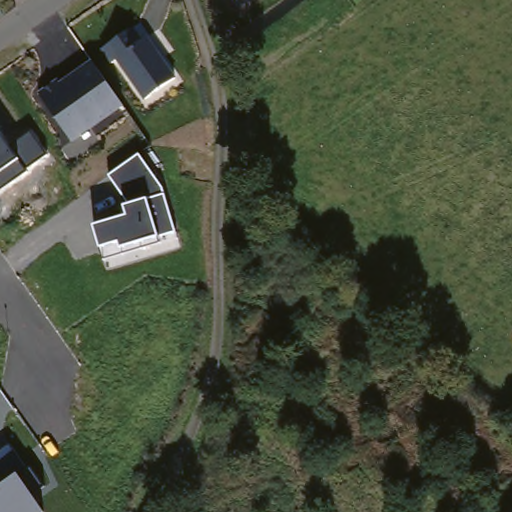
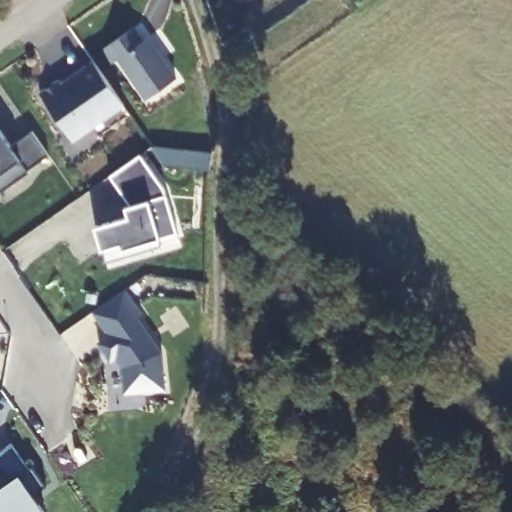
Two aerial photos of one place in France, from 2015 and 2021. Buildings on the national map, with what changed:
unchanged [(143,40),(148,36),(176,76),(145,99),(117,59),(108,65),(100,52),(135,27),(143,40)]
unchanged [(125,106),(74,141),(41,93),(60,79),(62,83),(93,60),(125,106)]
unchanged [(10,147),(33,133),(48,155),(27,170),(28,171),(0,191),(0,133),(10,147)]
unchanged [(140,154),(165,187),(167,195),(177,231),(160,236),(161,243),(106,259),(103,248),(96,225),(128,216),(125,206),(131,204),(110,176),(140,154)]
new [(126,296),(143,320),(138,323),(164,358),(168,394),(128,398),(126,373),(119,363),(113,367),(101,349),(111,342),(95,319),(126,296)]
unchanged [(11,446),(29,470),(32,468),(44,485),(32,492),(45,512),(0,512),(0,453),(11,446)]

